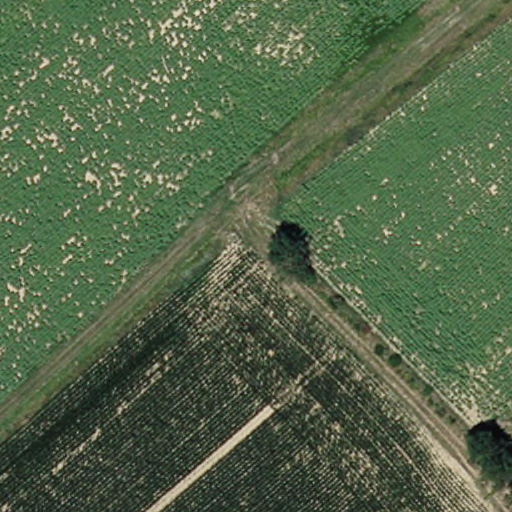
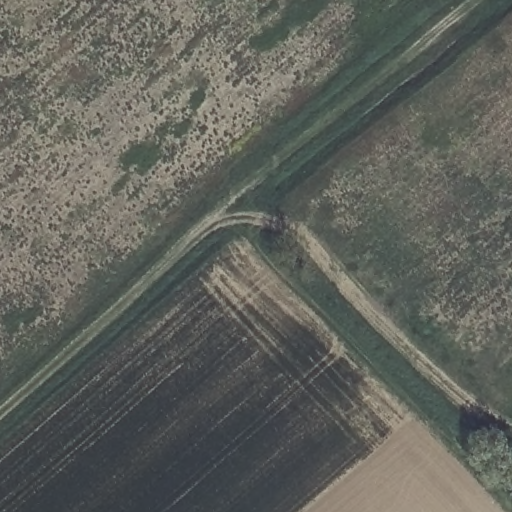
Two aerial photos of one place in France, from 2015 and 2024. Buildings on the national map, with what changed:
[]

